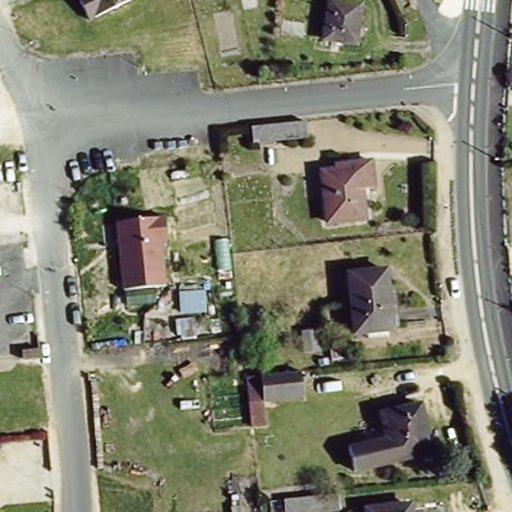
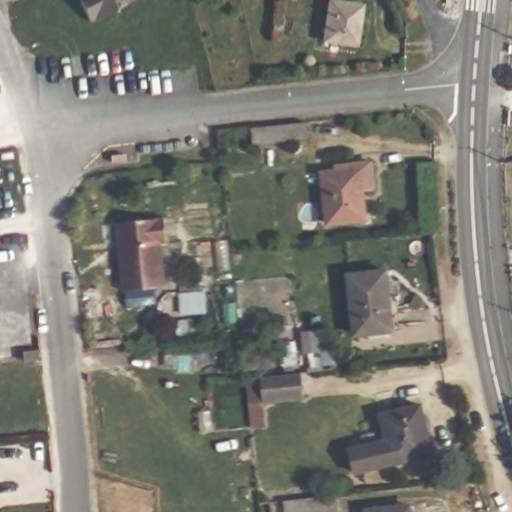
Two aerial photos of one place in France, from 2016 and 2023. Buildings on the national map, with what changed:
unchanged [(88,18),(80,0),(126,0),(88,18)]
unchanged [(358,1),(352,40),(321,35),(326,0),(351,0),(358,1)]
unchanged [(316,116),(319,132),(264,143),(261,125),(316,116)]
unchanged [(320,165),(358,159),(366,213),(328,218),(320,165)]
unchanged [(168,238),(161,238),(166,287),(123,291),(118,222),(166,218),(168,238)]
unchanged [(385,269),(392,327),(356,331),(349,273),(385,269)]
unchanged [(334,322),(339,345),(318,349),(314,326),(334,322)]
unchanged [(296,367),(299,394),(263,400),(258,371),(296,367)]
unchanged [(429,449),(396,458),(355,468),(351,449),(389,439),(379,410),(419,400),(429,449)]
unchanged [(354,510),(339,512),(301,512),(300,496),(353,491),(354,510)]
unchanged [(412,512),(365,512),(364,507),(411,502),(412,512)]

